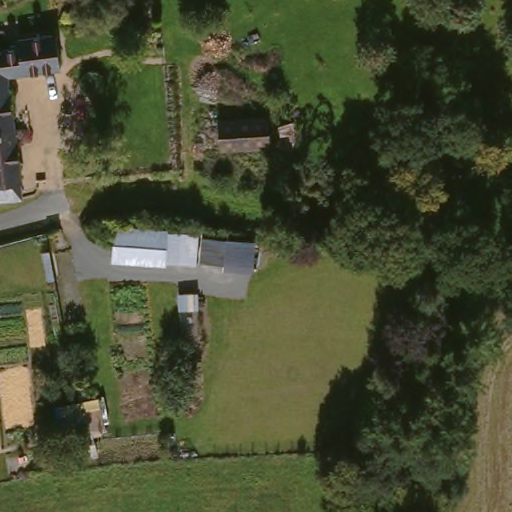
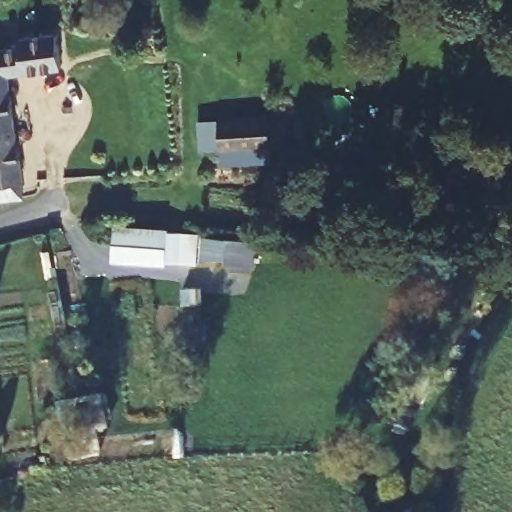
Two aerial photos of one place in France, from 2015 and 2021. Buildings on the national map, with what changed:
unchanged [(63,72),(8,75),(14,201),(4,202),(0,202),(0,50),(23,49),(23,41),(61,39),(62,61),(63,72)]
unchanged [(264,122),(264,154),(216,155),(215,123),(264,122)]
unchanged [(251,244),(249,272),(194,264),(193,275),(104,267),(113,224),(251,244)]
unchanged [(82,450),(63,452),(56,422),(74,417),(82,450)]

